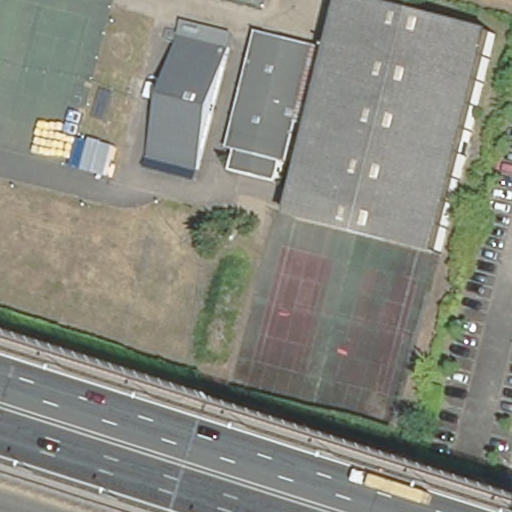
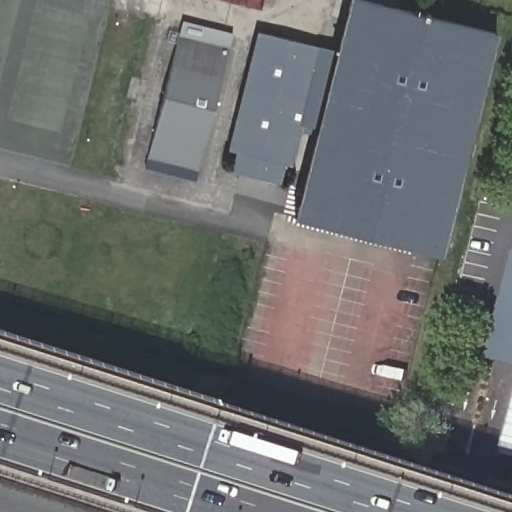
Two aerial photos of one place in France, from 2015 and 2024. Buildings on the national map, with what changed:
unchanged [(351,234),(289,219),(312,126),(318,99),(330,50),(343,0),(362,0),(493,33),(437,255),(434,254),(351,234)]
unchanged [(279,37),(330,50),(318,99),(312,126),(285,119),(275,160),(249,154),(223,146),(252,31),(279,37)]
unchanged [(148,156),(179,35),(229,48),(197,170),(148,156)]
new [(512,365),(488,359),(512,261),(512,365)]
new [(512,403),(512,450),(501,447),(512,403)]

